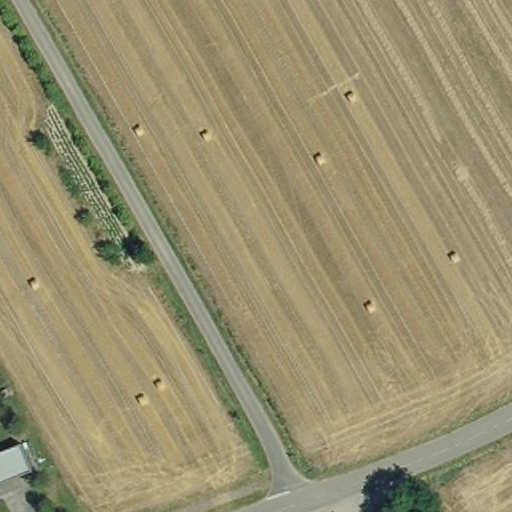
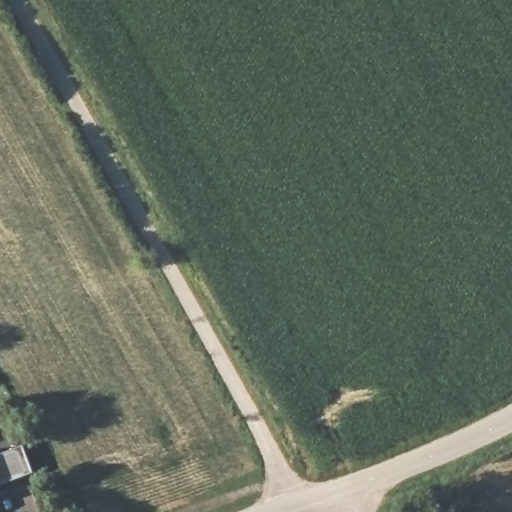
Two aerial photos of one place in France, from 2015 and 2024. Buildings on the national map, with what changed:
unchanged [(0,455),(19,447),(31,471),(0,483),(0,455)]

